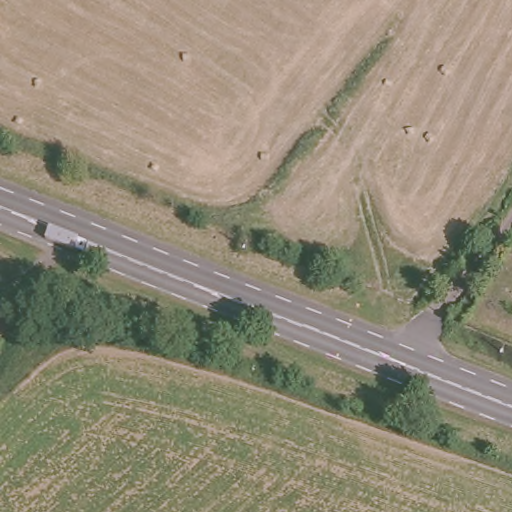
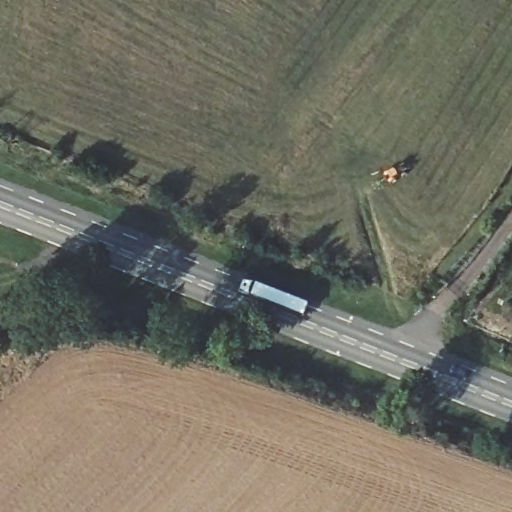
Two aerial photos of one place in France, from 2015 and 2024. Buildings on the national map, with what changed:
unchanged [(0,296),(28,316),(3,349),(0,347),(0,296)]

